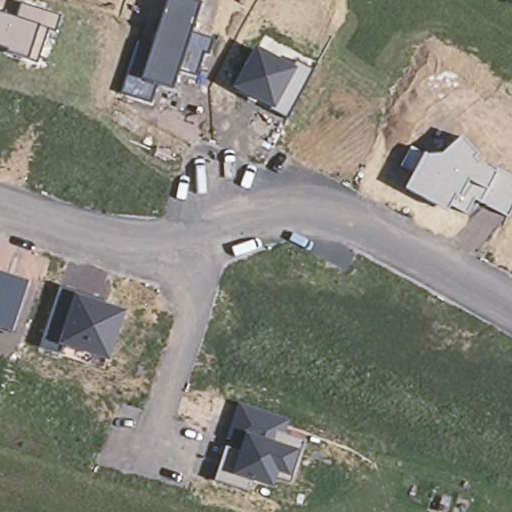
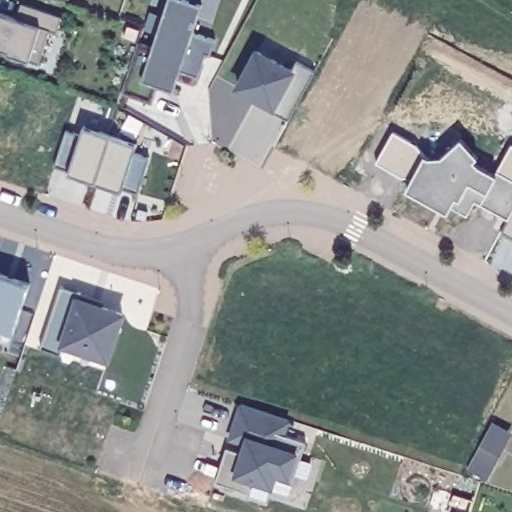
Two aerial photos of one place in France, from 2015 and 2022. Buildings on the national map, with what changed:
unchanged [(150,102),(122,92),(139,43),(154,47),(169,0),(195,0),(202,2),(192,32),(214,40),(210,53),(204,52),(196,75),(179,69),(173,89),(158,83),(150,102)]
unchanged [(38,61),(29,57),(29,59),(8,51),(8,48),(0,46),(0,13),(17,18),(22,2),(61,15),(56,31),(50,28),(38,61)]
unchanged [(313,70),(287,117),(270,109),(271,105),(234,88),(257,48),(295,67),(296,61),(313,70)]
new [(81,135),(84,128),(136,147),(133,154),(148,160),(138,195),(122,189),(120,194),(67,177),(69,173),(55,168),(66,132),(81,135)]
unchanged [(466,213),(450,204),(446,211),(405,189),(415,171),(402,164),(412,148),(425,154),(428,156),(444,154),(462,138),(476,155),(472,158),(479,165),(496,173),(496,168),(512,177),(512,208),(507,217),(473,199),(466,213)]
new [(512,149),(512,177),(496,168),(510,147),(512,149)]
new [(507,217),(512,208),(512,239),(502,233),(507,217)]
unchanged [(0,328),(0,274),(28,282),(12,332),(0,328)]
unchanged [(63,345),(61,353),(41,347),(60,287),(104,300),(103,303),(126,311),(109,360),(63,345)]
unchanged [(215,479),(239,403),(290,420),(285,435),(304,441),(291,482),(276,476),(272,487),(251,481),(248,491),(215,479)]
new [(492,423),(512,434),(488,483),(467,471),(492,423)]

